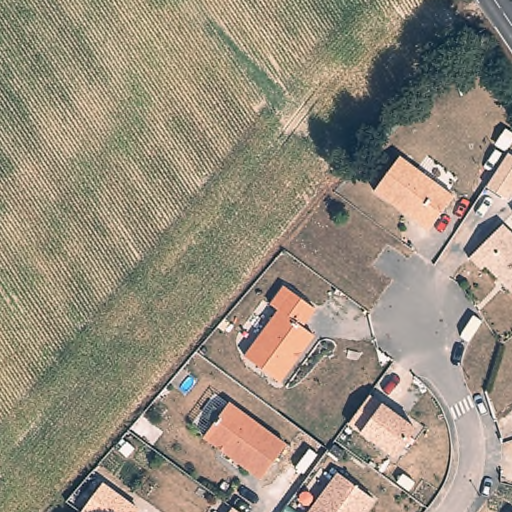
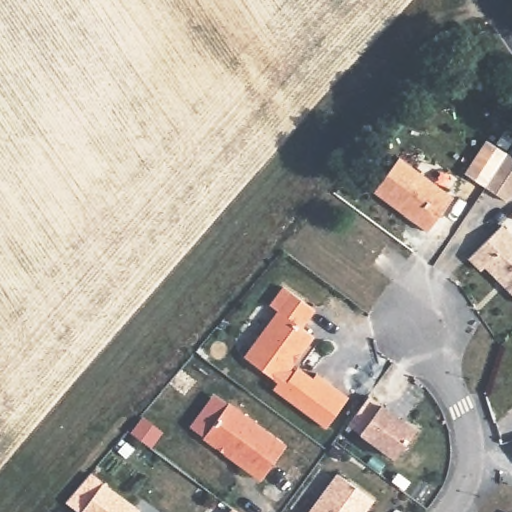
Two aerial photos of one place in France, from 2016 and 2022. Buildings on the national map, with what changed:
new [(508,153),(512,155),(512,195),(507,203),(485,188),(508,153)]
unchanged [(373,191),(398,157),(452,197),(427,231),(413,221),(405,215),(373,191)]
unchanged [(512,235),(512,294),(485,267),(481,270),(469,258),(502,225),(512,235)]
unchanged [(318,309),(303,329),(315,335),(281,384),(241,358),(277,311),(270,304),(283,284),(318,309)]
new [(281,384),(295,365),(313,378),(316,374),(350,398),(327,431),(273,390),(278,383),(281,384)]
unchanged [(286,446),(261,479),(204,437),(229,403),(286,446)]
unchanged [(420,429),(394,463),(360,437),(382,405),(420,429)]
unchanged [(373,498),(363,512),(304,512),(336,471),(373,498)]
unchanged [(143,512),(82,512),(104,485),(143,512)]
unchanged [(239,512),(230,512),(233,508),(239,512)]

